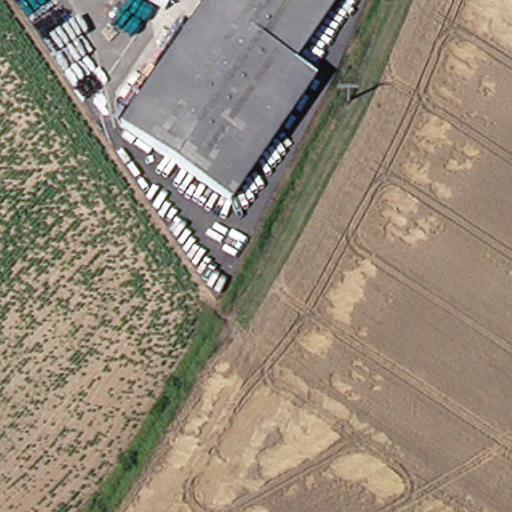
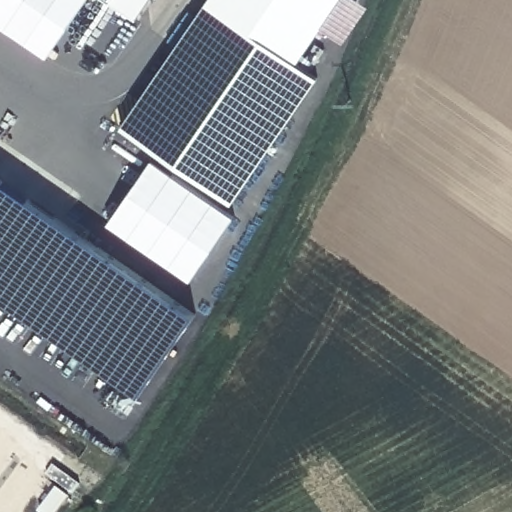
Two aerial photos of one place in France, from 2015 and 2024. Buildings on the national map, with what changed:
new [(0,28),(0,0),(87,0),(46,60),(0,28)]
new [(150,0),(136,21),(110,0),(150,0)]
unchanged [(328,81),(242,207),(130,129),(220,0),(350,0),(308,65),(328,81)]
new [(151,160),(234,217),(190,281),(108,225),(151,160)]
new [(138,397),(0,301),(0,180),(194,316),(138,397)]

